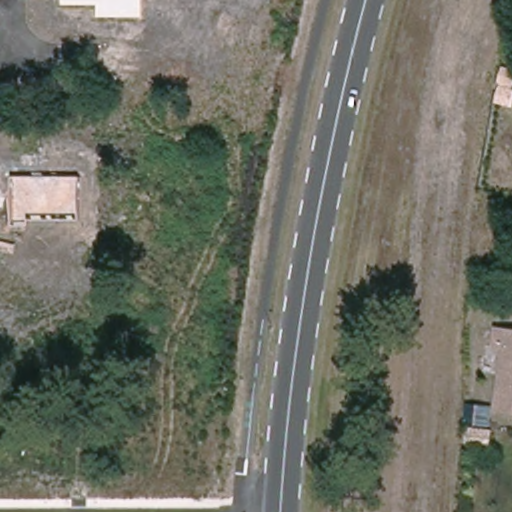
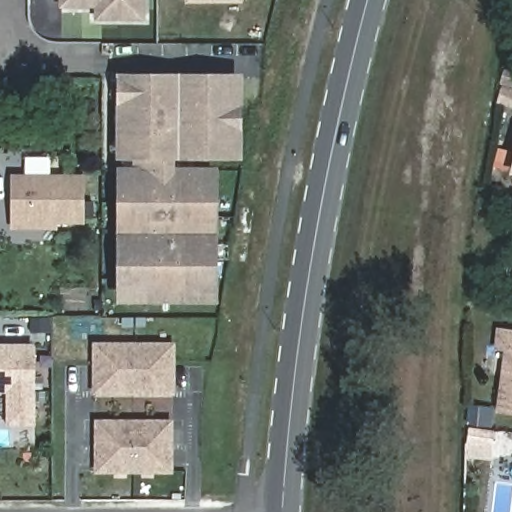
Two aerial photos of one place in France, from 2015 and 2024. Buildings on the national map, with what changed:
unchanged [(95,17),(95,5),(59,5),(59,0),(140,0),(140,17),(95,17)]
new [(242,1),(191,1),(191,0),(242,0),(242,1)]
new [(220,303),(117,303),(117,168),(134,168),(134,160),(117,160),(117,75),(242,75),(243,160),(176,160),(176,168),(220,167),(220,303)]
new [(492,168),(498,149),(512,152),(512,176),(510,175),(492,168)]
unchanged [(80,220),(32,220),(31,227),(17,226),(17,176),(81,177),(80,220)]
unchanged [(505,356),(494,355),(496,336),(512,338),(512,419),(496,416),(505,356)]
new [(94,395),(93,344),(175,343),(175,395),(94,395)]
new [(35,347),(35,423),(12,423),(12,391),(0,391),(0,347),(35,347)]
new [(96,474),(95,420),(174,420),(174,475),(96,474)]

